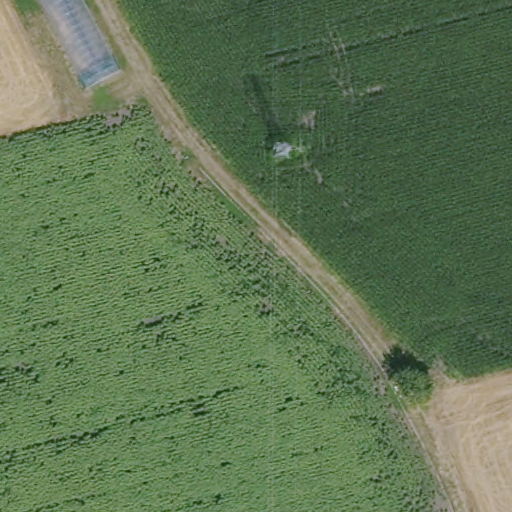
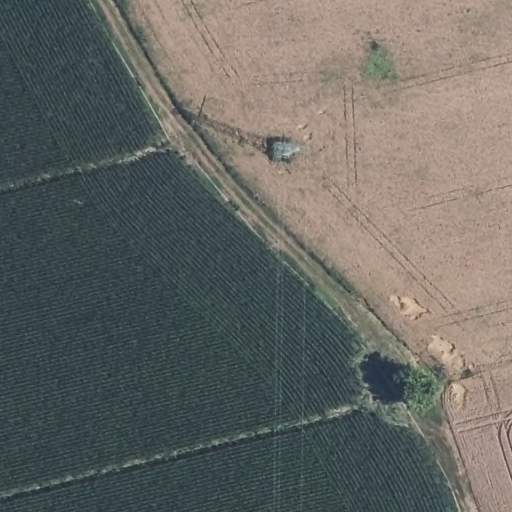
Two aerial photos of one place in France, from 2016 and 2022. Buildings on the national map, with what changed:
demolished [(46,0),(85,0),(122,70),(91,86),(46,0)]

